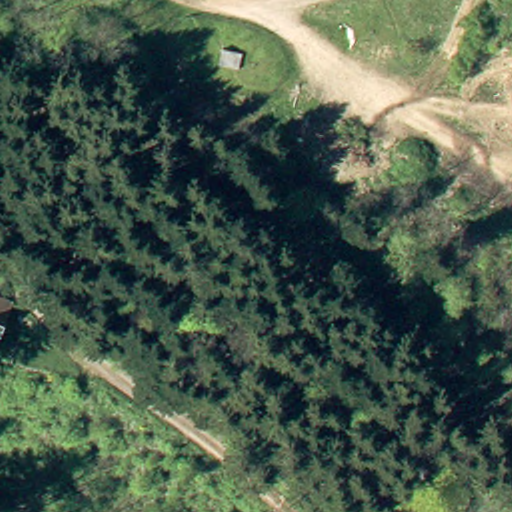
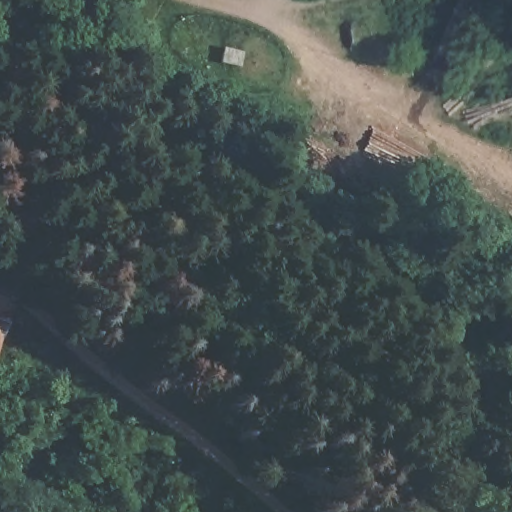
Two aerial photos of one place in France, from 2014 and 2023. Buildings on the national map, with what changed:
unchanged [(13,318),(0,349),(0,313),(13,318)]

